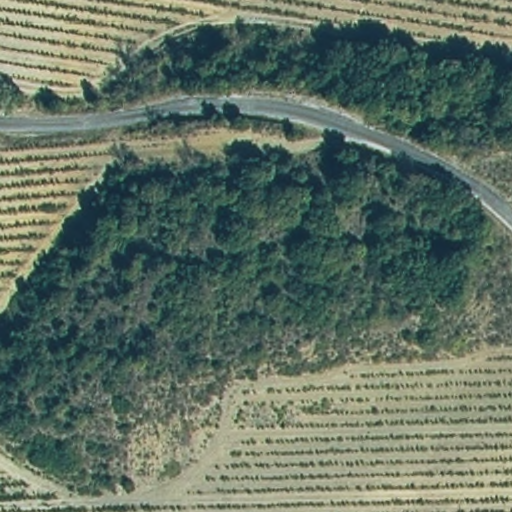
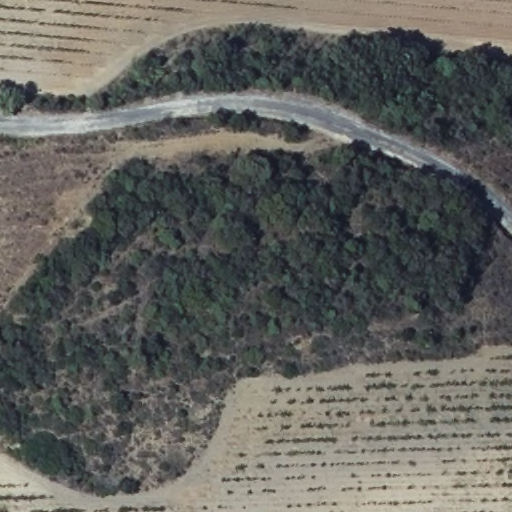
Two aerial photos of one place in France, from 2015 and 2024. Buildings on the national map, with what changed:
[]

